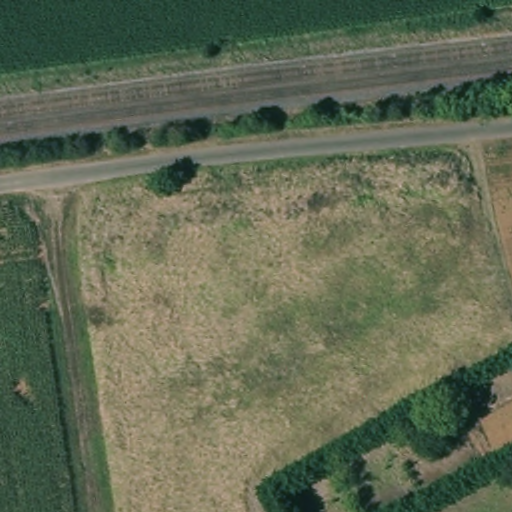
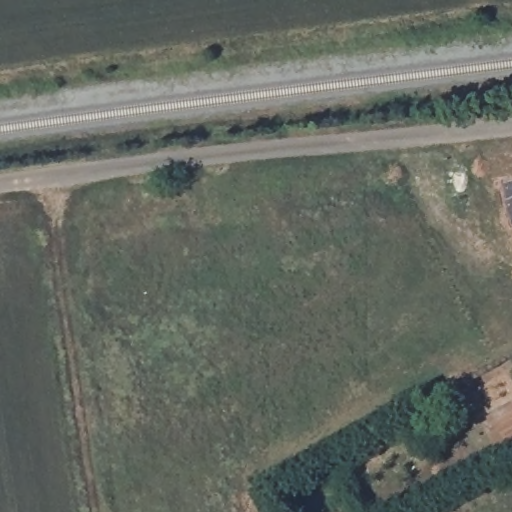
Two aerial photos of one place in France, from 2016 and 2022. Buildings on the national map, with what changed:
[]

